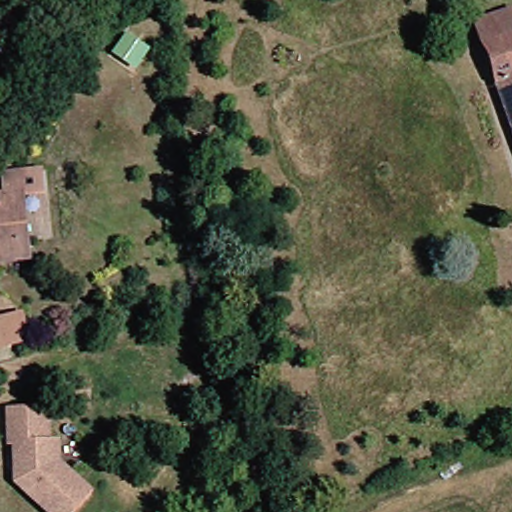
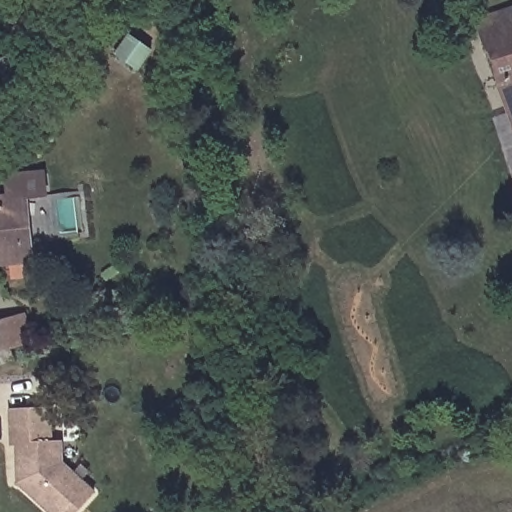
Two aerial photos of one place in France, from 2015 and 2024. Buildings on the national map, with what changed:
unchanged [(512,8),(512,71),(499,74),(488,36),(481,16),(512,8)]
unchanged [(512,71),(512,115),(499,74),(512,71)]
unchanged [(6,205),(4,183),(42,181),(43,203),(21,204),(25,264),(0,266),(0,205),(6,205)]
unchanged [(13,322),(30,321),(32,347),(14,348),(0,349),(0,323),(13,322)]
unchanged [(18,445),(13,445),(16,409),(56,412),(54,446),(64,447),(62,467),(93,500),(80,512),(43,512),(22,489),(16,482),(17,469),(18,445)]

